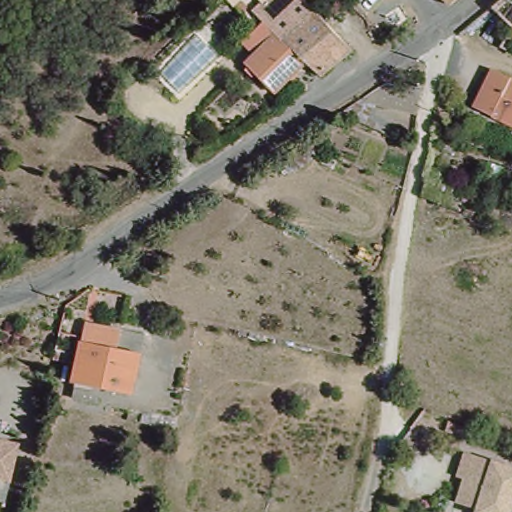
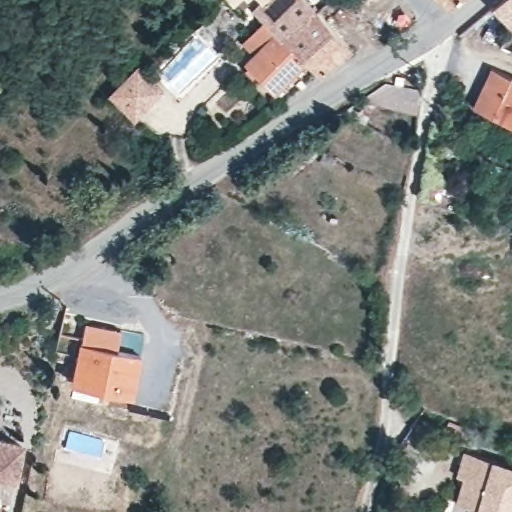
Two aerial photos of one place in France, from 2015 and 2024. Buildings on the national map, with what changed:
unchanged [(236,6),(231,0),(244,0),(236,6)]
unchanged [(272,42),(282,35),(254,5),(259,0),(301,0),(312,11),(349,49),(319,75),(309,64),(299,74),(272,96),(244,65),(272,42)]
unchanged [(447,8),(437,0),(453,0),(447,8)]
unchanged [(511,27),(491,8),(499,0),(512,0),(512,26),(511,27)]
new [(142,65),(166,91),(137,119),(112,93),(142,65)]
unchanged [(425,75),(414,82),(407,73),(418,66),(425,75)]
unchanged [(470,105),(488,66),(512,78),(512,126),(470,105)]
unchanged [(418,112),(356,97),(385,80),(418,85),(418,112)]
unchanged [(72,381),(81,340),(87,321),(126,327),(122,348),(137,351),(127,393),(72,381)]
unchanged [(12,481),(0,480),(0,435),(20,439),(12,481)]
unchanged [(469,446),(512,463),(512,512),(475,512),(477,506),(461,500),(472,470),(461,464),(469,446)]

